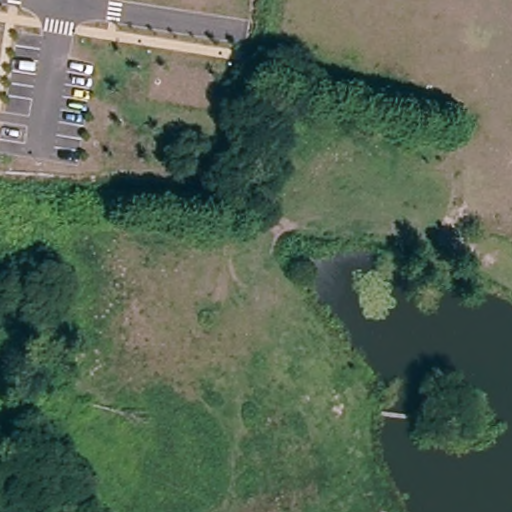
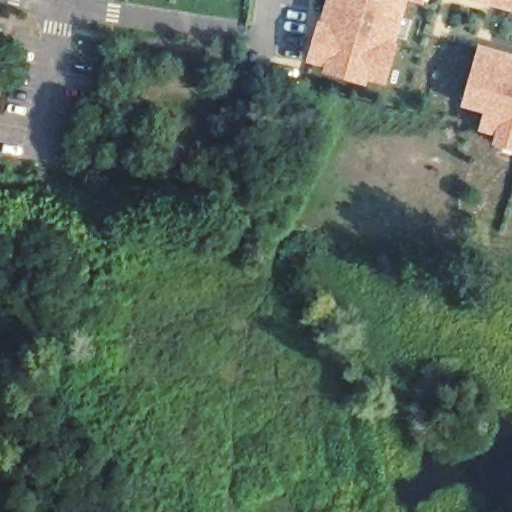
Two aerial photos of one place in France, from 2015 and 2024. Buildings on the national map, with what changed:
new [(372,82),(370,87),(323,73),(325,67),(307,62),(326,0),(426,0),(424,5),(410,1),(385,88),(372,82)]
new [(512,11),(471,0),(512,0),(512,11)]
new [(496,137),(480,132),(485,114),(462,107),(480,44),(512,53),(512,152),(494,146),(496,137)]

